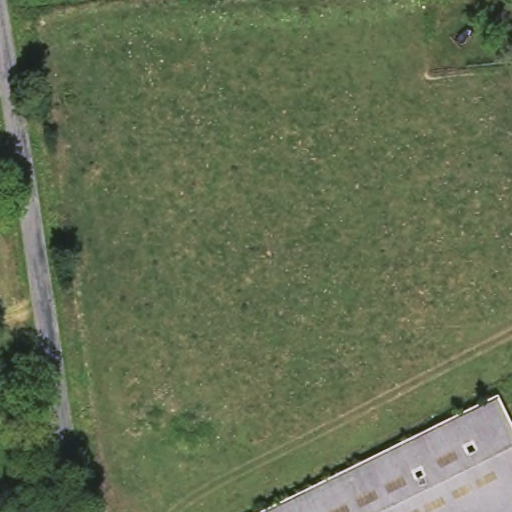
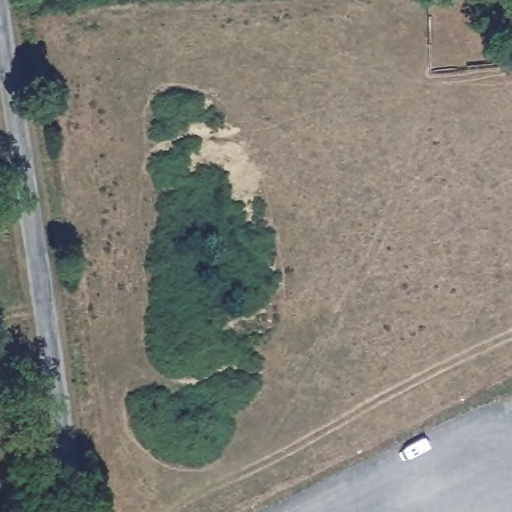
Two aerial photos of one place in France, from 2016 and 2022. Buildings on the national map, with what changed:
demolished [(500,396),(512,421),(512,512),(261,512),(453,419),(500,396)]

